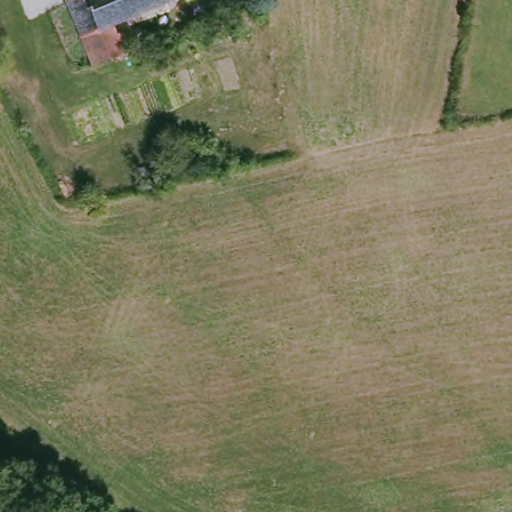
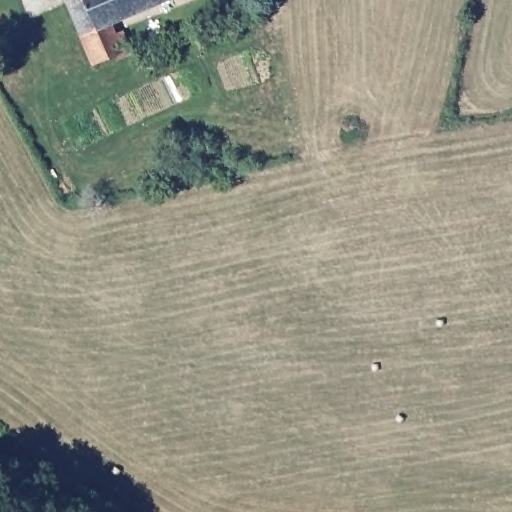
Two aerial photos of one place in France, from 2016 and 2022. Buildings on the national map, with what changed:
unchanged [(69,0),(168,0),(116,22),(120,33),(127,32),(134,50),(96,64),(69,0)]

